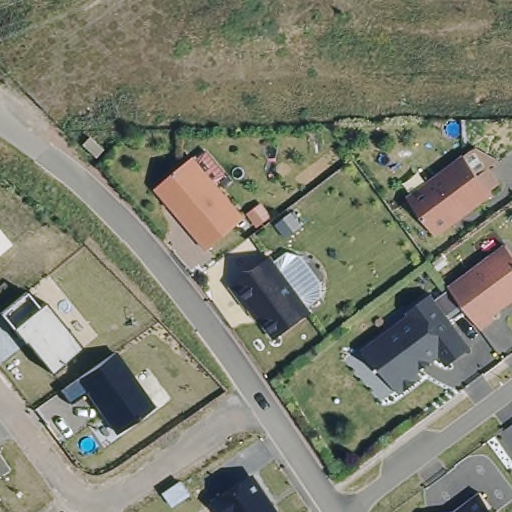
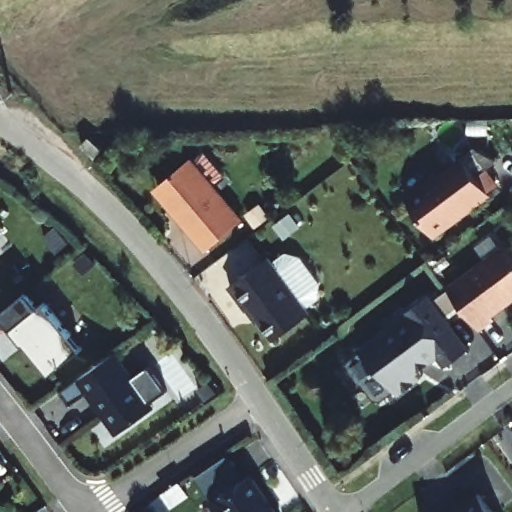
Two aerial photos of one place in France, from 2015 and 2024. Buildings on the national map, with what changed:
unchanged [(95,146),(107,159),(100,166),(87,154),(95,146)]
unchanged [(440,242),(412,204),(467,163),(482,182),(491,175),(502,190),(493,197),(496,200),(440,242)]
unchanged [(247,227),(212,258),(177,219),(181,215),(162,194),(195,166),(247,227)]
unchanged [(477,252),(498,235),(512,254),(512,309),(497,320),(500,324),(485,335),(454,294),(489,268),(477,252)]
unchanged [(273,265),(315,322),(280,347),(256,315),(252,318),(235,294),(273,265)]
unchanged [(3,313),(30,294),(42,304),(76,344),(50,369),(13,325),(3,313)]
unchanged [(474,356),(452,373),(443,362),(421,379),(426,385),(403,402),(385,377),(382,379),(367,359),(392,340),(393,342),(416,325),(412,319),(433,303),(474,356)]
unchanged [(85,391),(70,400),(60,387),(111,349),(153,404),(112,433),(85,391)]
unchanged [(213,503),(253,477),(278,512),(220,512),(213,503)]
unchanged [(491,506),(496,512),(483,512),(491,506)]

